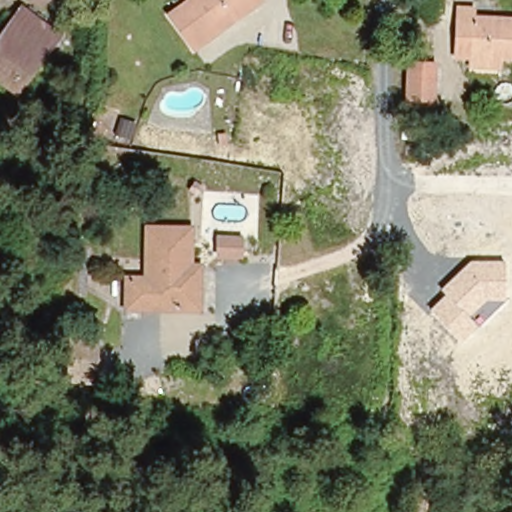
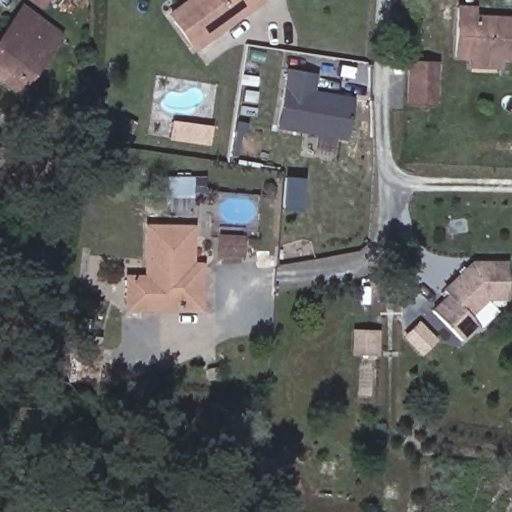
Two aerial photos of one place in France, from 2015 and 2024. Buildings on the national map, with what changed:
unchanged [(42,0),(38,4),(34,0),(42,0)]
unchanged [(170,13),(189,0),(262,0),(194,47),(170,13)]
unchanged [(476,52),(459,50),(462,2),(476,4),(476,14),(512,19),(512,57),(505,56),(504,69),(475,65),(476,52)]
unchanged [(10,23),(22,8),(61,42),(19,92),(0,77),(0,36),(10,23)]
unchanged [(411,105),(414,62),(436,65),(433,108),(411,105)]
new [(353,98),(342,141),(336,140),(334,150),(317,147),(319,137),(277,129),(288,70),(317,75),(314,91),(353,98)]
new [(212,126),(209,146),(169,141),(172,120),(212,126)]
new [(301,211),(282,211),(282,177),(302,178),(301,211)]
unchanged [(127,309),(127,286),(150,286),(151,232),(191,232),(191,262),(204,263),(204,277),(204,309),(127,309)]
unchanged [(504,300),(484,300),(468,316),(479,327),(462,343),(429,311),(445,294),(438,288),(468,260),(505,260),(504,300)]
unchanged [(84,340),(85,332),(111,335),(110,343),(107,378),(80,378),(84,340)]

